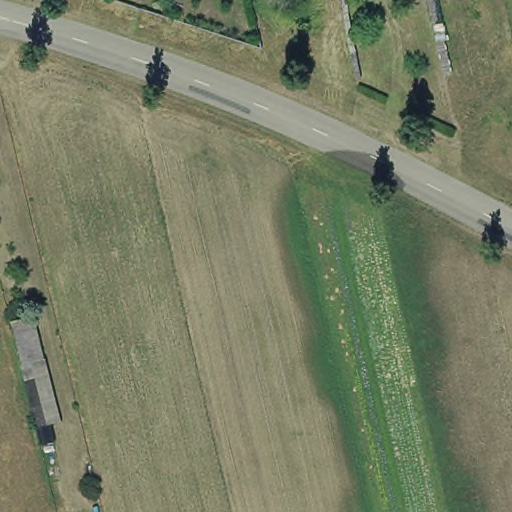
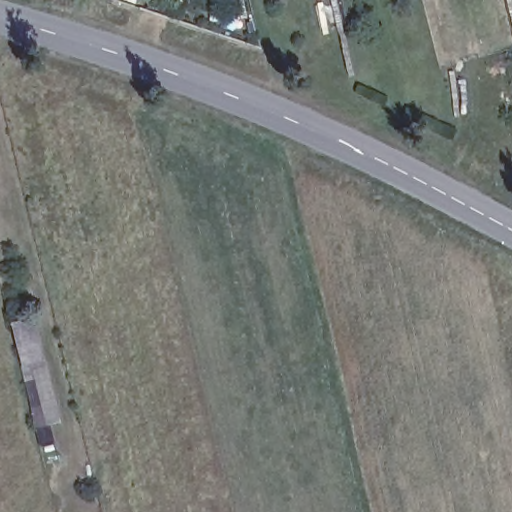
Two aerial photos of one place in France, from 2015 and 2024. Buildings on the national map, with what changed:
unchanged [(34,321),(59,420),(35,427),(12,328),(34,321)]

